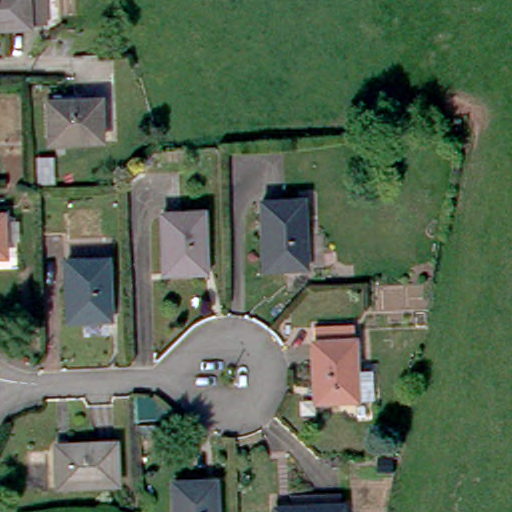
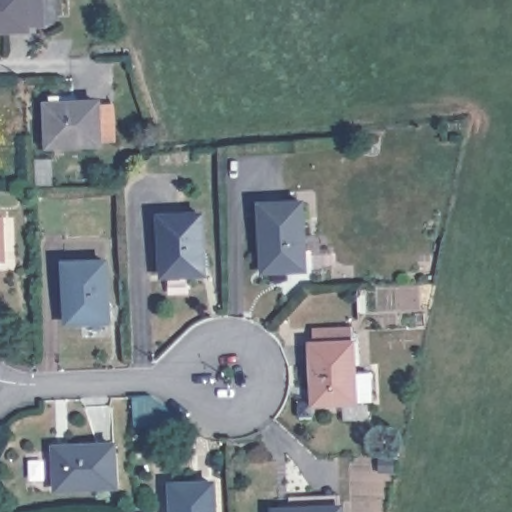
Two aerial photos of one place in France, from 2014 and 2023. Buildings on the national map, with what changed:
unchanged [(42,25),(23,25),(23,29),(0,30),(0,0),(41,0),(42,25)]
unchanged [(96,143),(47,144),(44,104),(53,104),(53,96),(61,95),(62,104),(95,102),(96,143)]
unchanged [(302,204),(305,269),(265,271),(262,205),(302,204)]
unchanged [(202,215),(205,273),(163,275),(161,216),(202,215)]
unchanged [(0,218),(3,258),(0,259),(0,218)]
unchanged [(105,258),(107,315),(66,316),(65,260),(105,258)]
unchanged [(360,400),(307,402),(305,343),(307,343),(307,327),(346,326),(346,342),(355,342),(357,372),(373,371),(375,390),(375,399),(360,400)]
unchanged [(112,445),(114,485),(57,487),(55,448),(112,445)]
unchanged [(213,512),(173,512),(172,484),(211,482),(213,512)]
unchanged [(338,498),(339,512),(291,512),(290,501),(338,498)]

